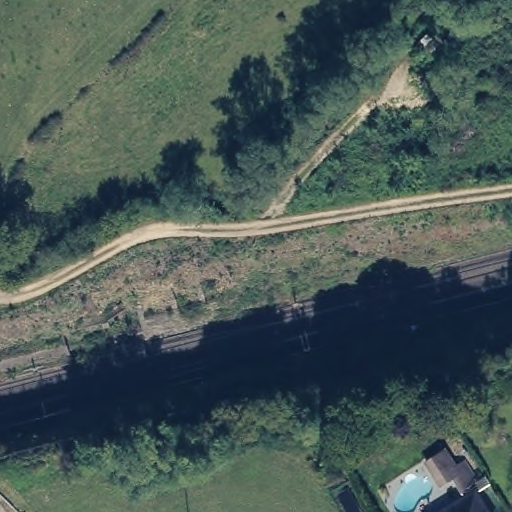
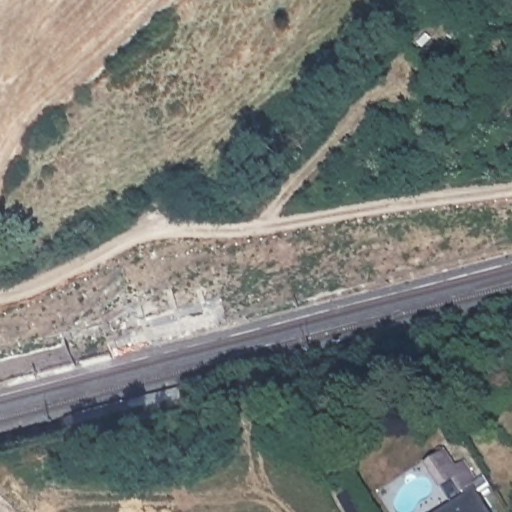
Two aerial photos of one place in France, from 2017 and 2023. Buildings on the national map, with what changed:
unchanged [(472,485),(488,512),(434,512),(472,485)]

